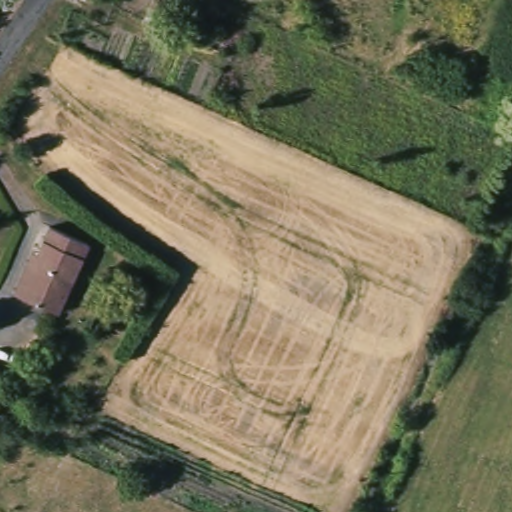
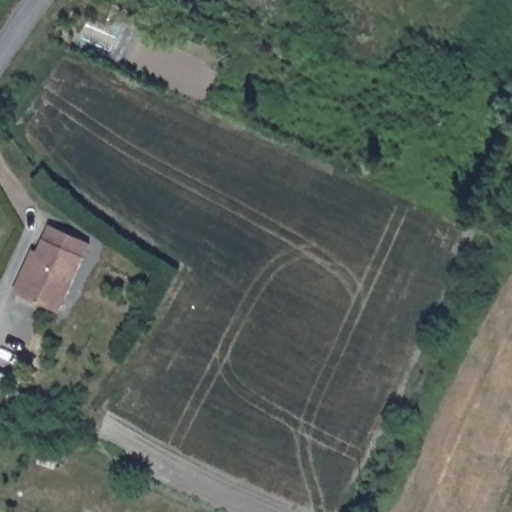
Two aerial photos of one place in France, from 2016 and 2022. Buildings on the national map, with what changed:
unchanged [(40,252),(55,226),(95,247),(59,311),(19,290),(14,287),(34,250),(40,252)]
unchanged [(0,395),(0,370),(10,375),(0,395)]

